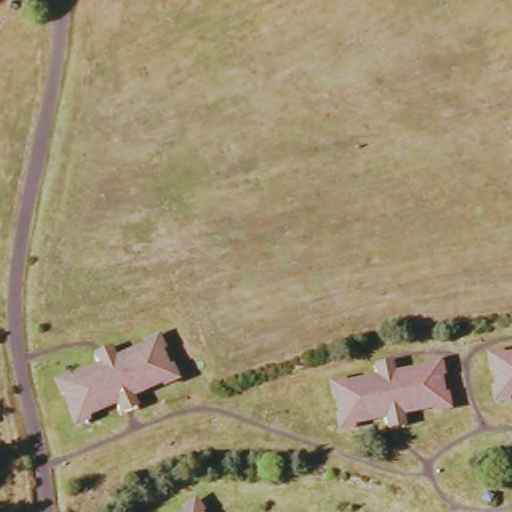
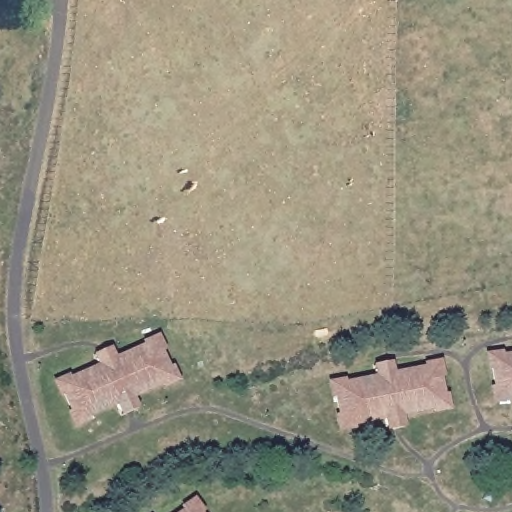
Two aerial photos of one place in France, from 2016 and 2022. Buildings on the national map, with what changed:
unchanged [(108,360),(115,357),(120,364),(148,352),(156,360),(163,358),(171,375),(164,378),(163,384),(163,390),(125,406),(108,360)]
unchanged [(504,391),(502,372),(509,371),(510,363),(510,359),(512,359),(512,397),(504,391)]
unchanged [(88,423),(83,416),(77,415),(73,415),(65,397),(72,393),(70,385),(99,372),(97,364),(108,360),(125,406),(88,423)]
unchanged [(437,379),(444,382),(449,398),(439,405),(439,411),(427,414),(397,419),(389,367),(399,365),(399,377),(418,373),(430,371),(437,379)]
unchanged [(397,419),(356,427),(353,421),(343,417),(342,399),(351,385),(381,381),(380,369),(389,367),(397,419)]
unchanged [(191,511),(192,512),(188,512),(191,511)]

